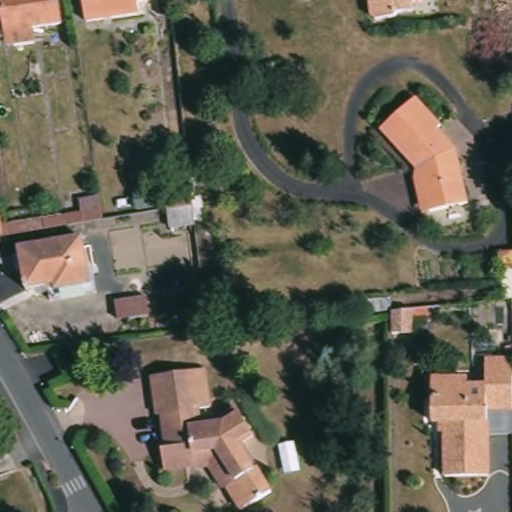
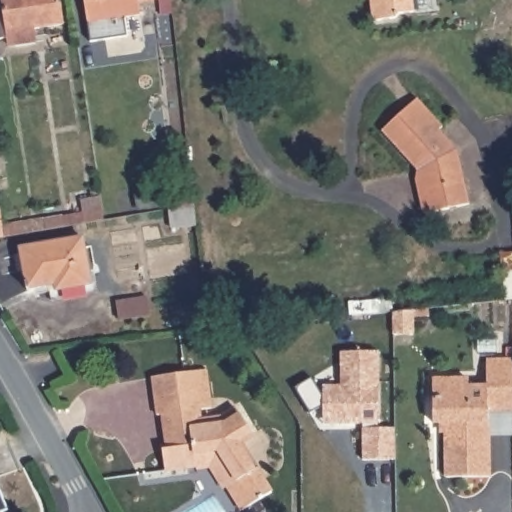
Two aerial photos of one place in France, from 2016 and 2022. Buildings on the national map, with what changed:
unchanged [(34,28),(36,44),(16,47),(14,32),(11,32),(11,39),(0,41),(0,0),(60,0),(64,24),(34,28)]
unchanged [(146,20),(144,4),(126,7),(126,16),(131,15),(131,19),(73,29),(69,0),(159,0),(161,17),(146,20)]
unchanged [(374,19),(371,0),(415,0),(417,12),(374,19)]
unchanged [(413,181),(414,169),(379,132),(415,96),(443,125),(438,131),(458,150),(470,206),(430,216),(423,218),(413,181)]
unchanged [(163,228),(160,210),(156,187),(185,183),(188,205),(190,223),(163,228)]
unchanged [(76,201),(96,198),(100,222),(62,229),(60,217),(78,215),(76,201)]
unchanged [(20,225),(22,236),(3,239),(1,229),(20,225)]
unchanged [(0,240),(0,236),(1,240),(0,240)]
unchanged [(84,241),(91,287),(54,293),(54,287),(26,292),(21,252),(84,241)]
unchanged [(138,302),(139,322),(109,325),(107,307),(138,302)]
unchanged [(405,307),(405,329),(385,331),(385,308),(405,307)]
new [(378,422),(322,422),(323,406),(309,412),(295,388),(311,378),(323,399),(323,386),(340,386),(340,352),(377,352),(378,422)]
unchanged [(471,386),(489,386),(489,357),(512,357),(512,407),(492,407),(492,478),(448,479),(447,427),(435,428),(435,402),(435,377),(449,377),(471,377),(471,386)]
unchanged [(194,469),(163,473),(160,452),(164,452),(159,417),(185,413),(180,376),(202,372),(207,411),(191,413),(193,426),(220,422),(232,413),(248,439),(236,448),(267,496),(241,512),(238,512),(224,491),(219,494),(205,472),(194,473),(194,469)]
unchanged [(185,413),(159,417),(154,418),(150,380),(180,376),(185,413)]

